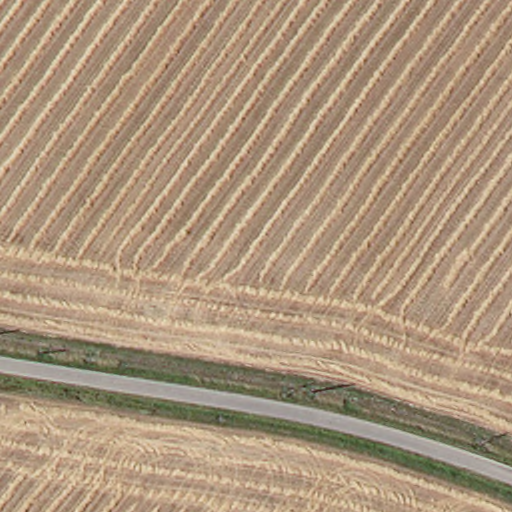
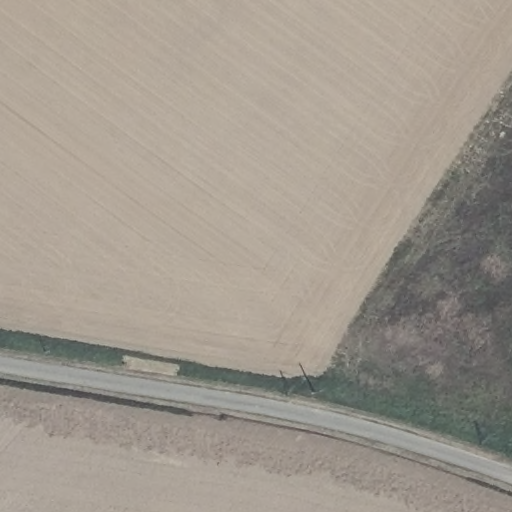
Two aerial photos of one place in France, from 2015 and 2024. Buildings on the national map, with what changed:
[]

